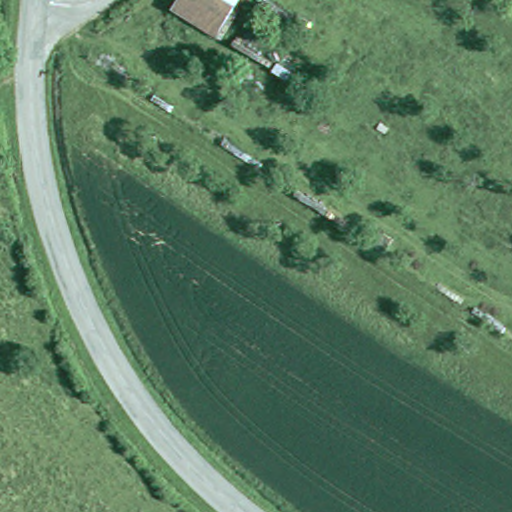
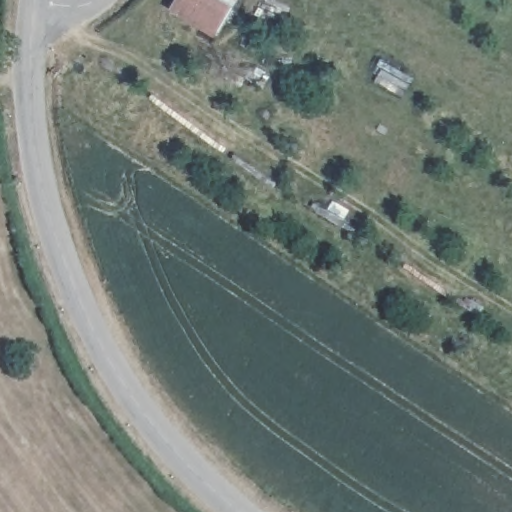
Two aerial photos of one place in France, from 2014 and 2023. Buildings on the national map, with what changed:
unchanged [(169,0),(231,0),(209,37),(164,10),(169,0)]

